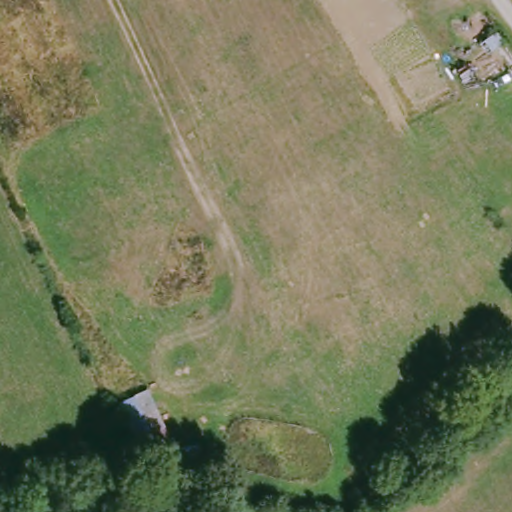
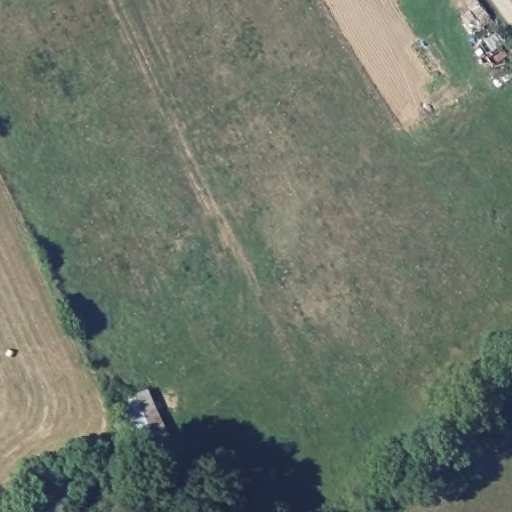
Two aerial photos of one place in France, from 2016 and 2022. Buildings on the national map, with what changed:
unchanged [(158,407),(178,448),(172,451),(178,465),(158,475),(128,422),(158,407)]

